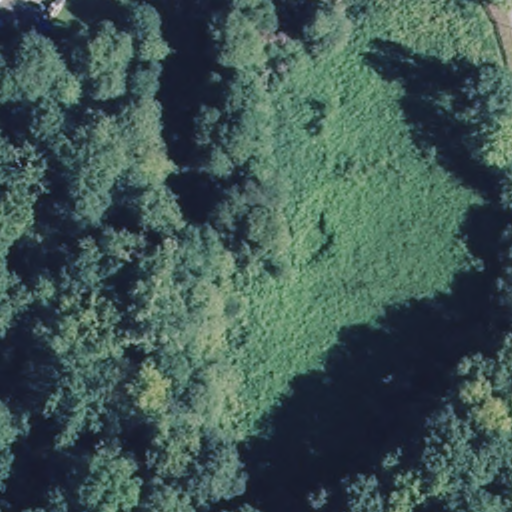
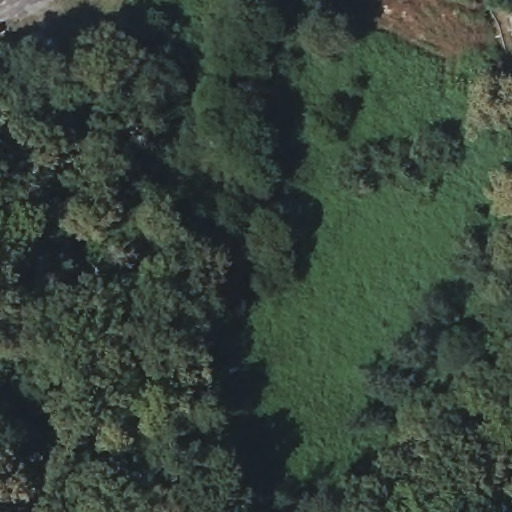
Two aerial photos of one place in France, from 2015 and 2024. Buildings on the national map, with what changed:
[]

